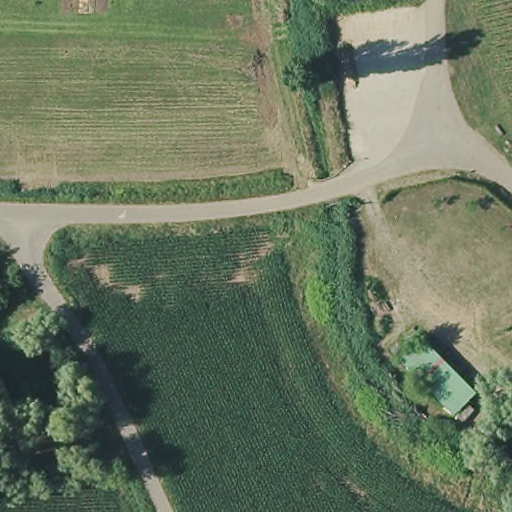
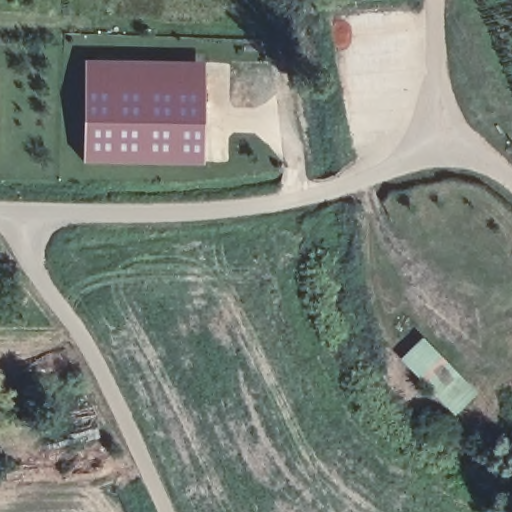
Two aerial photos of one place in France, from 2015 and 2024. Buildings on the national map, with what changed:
new [(83,161),(86,60),(206,62),(204,163),(83,161)]
new [(401,358),(425,336),(478,392),(455,414),(401,358)]

